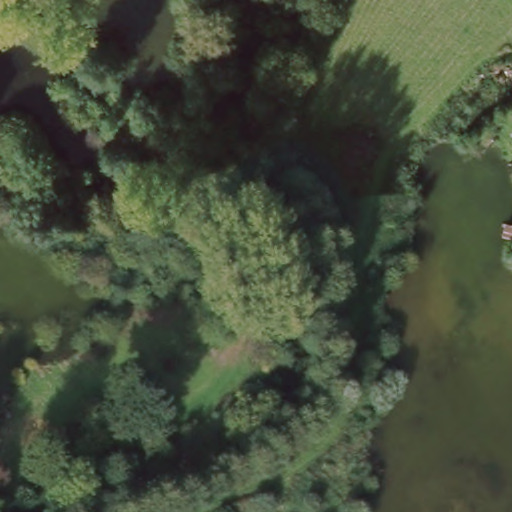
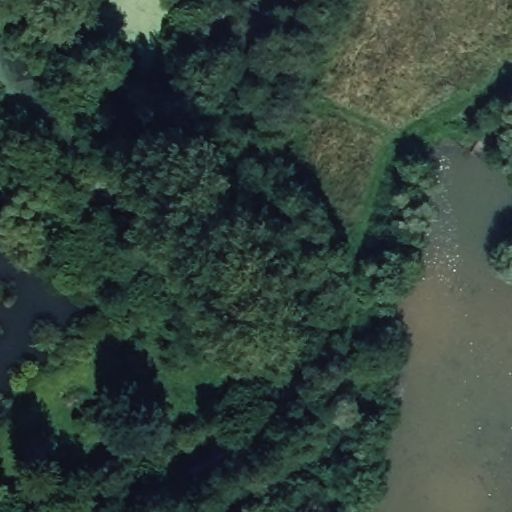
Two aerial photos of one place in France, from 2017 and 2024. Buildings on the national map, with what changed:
unchanged [(138,399),(153,428),(129,442),(114,413),(138,399)]

